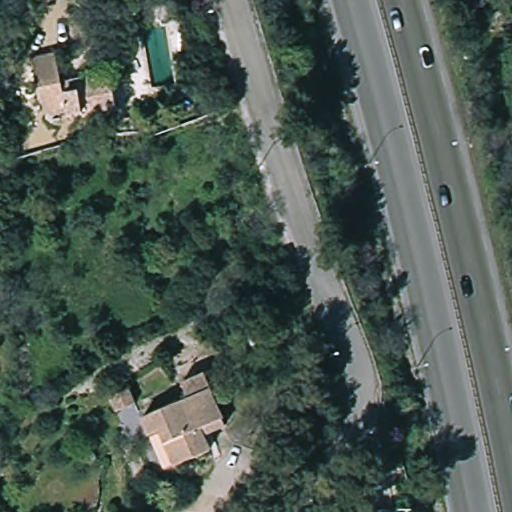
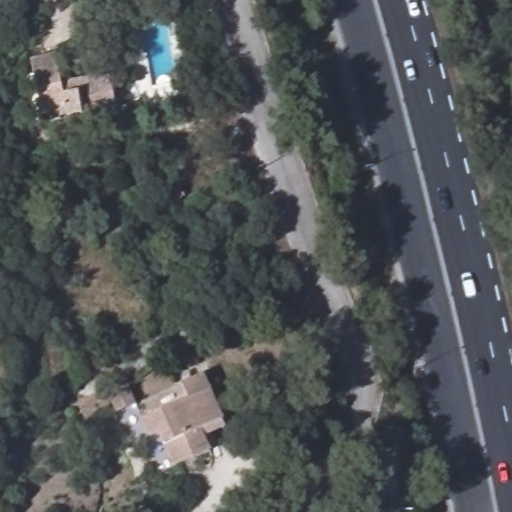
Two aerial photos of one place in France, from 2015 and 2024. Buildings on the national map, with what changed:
unchanged [(30,62),(55,56),(61,85),(110,75),(116,113),(66,124),(64,114),(42,119),(30,62)]
unchanged [(143,438),(136,419),(183,399),(178,387),(201,376),(220,419),(197,429),(208,451),(168,468),(153,433),(143,438)]

